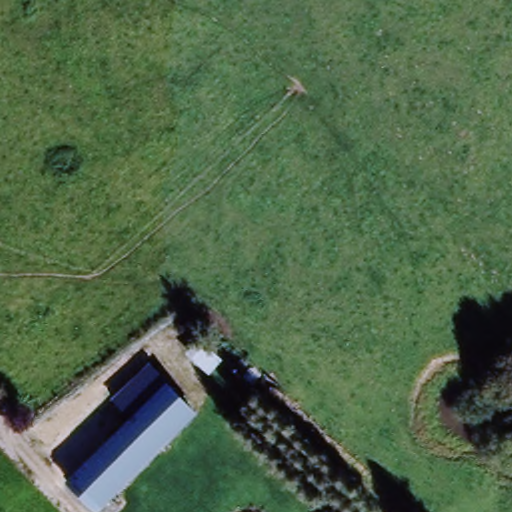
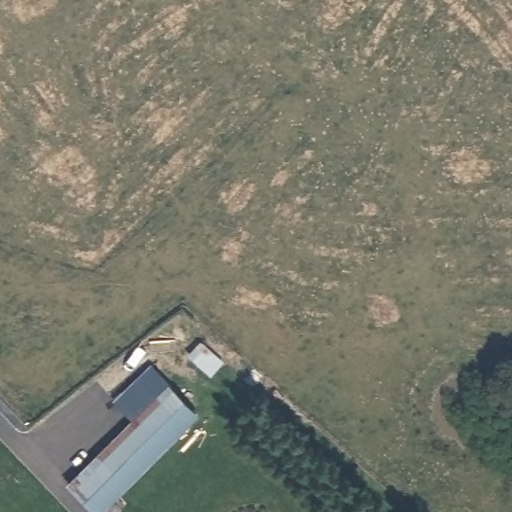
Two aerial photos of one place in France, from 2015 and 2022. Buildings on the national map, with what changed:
unchanged [(195,413),(100,509),(73,483),(133,422),(113,401),(150,365),(195,413)]

